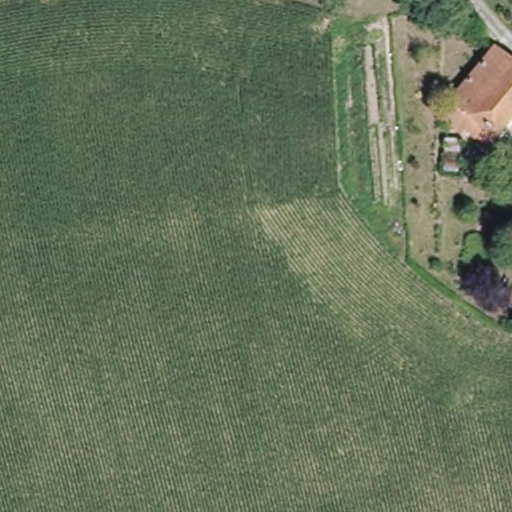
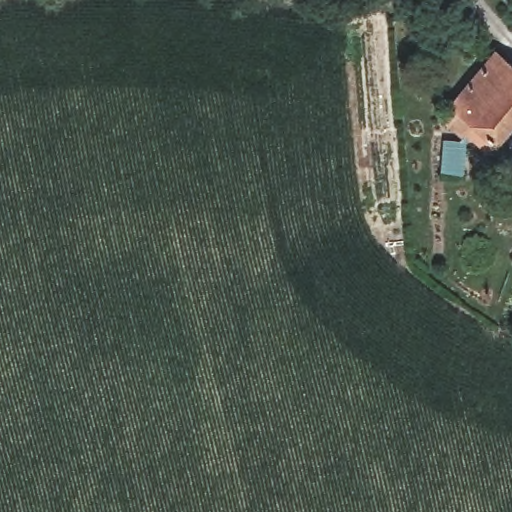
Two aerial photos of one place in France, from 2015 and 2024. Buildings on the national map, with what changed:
unchanged [(457,124),(465,115),(446,98),(498,44),(512,58),(512,110),(480,145),(457,124)]

